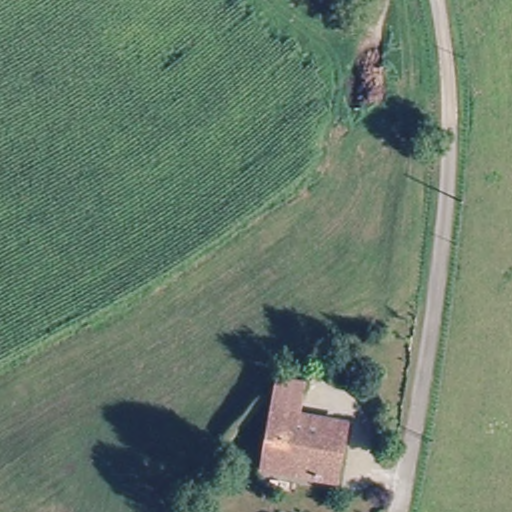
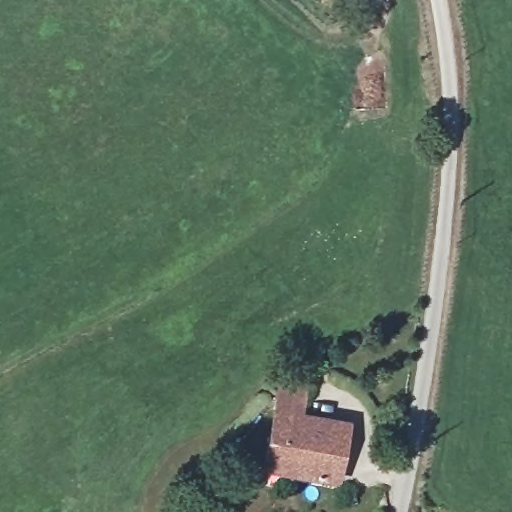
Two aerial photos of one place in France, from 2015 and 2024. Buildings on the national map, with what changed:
unchanged [(265,470),(272,413),(274,413),(278,382),(301,385),(297,416),(339,422),(335,452),(332,478),(321,477),(265,470)]

